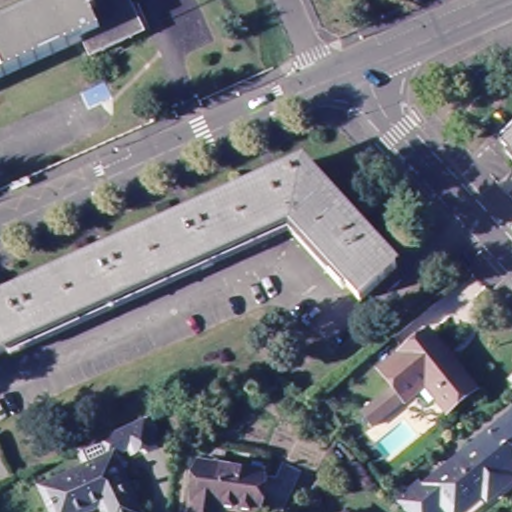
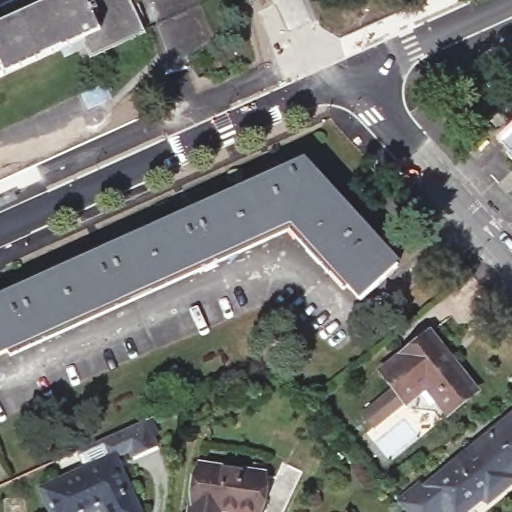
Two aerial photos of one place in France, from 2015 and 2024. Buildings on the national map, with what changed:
unchanged [(57,0),(134,0),(149,32),(97,55),(90,39),(0,80),(0,26),(4,25),(57,0)]
unchanged [(501,145),(512,136),(512,157),(501,145)]
unchanged [(293,219),(0,350),(0,296),(307,159),(400,258),(362,292),(293,219)]
unchanged [(370,411),(399,386),(385,370),(432,331),(462,368),(467,365),(483,383),(452,410),(439,394),(431,384),(410,399),(381,425),(370,411)]
unchanged [(426,484),(512,415),(512,480),(491,497),(486,491),(461,512),(453,512),(447,506),(440,512),(413,512),(402,497),(422,480),(426,484)]
unchanged [(161,436),(155,439),(159,448),(135,458),(132,451),(117,458),(140,512),(103,512),(54,512),(45,491),(86,471),(79,452),(147,422),(153,419),(161,436)]
unchanged [(242,512),(214,507),(213,512),(185,512),(194,465),(257,475),(251,512),(242,512)]

